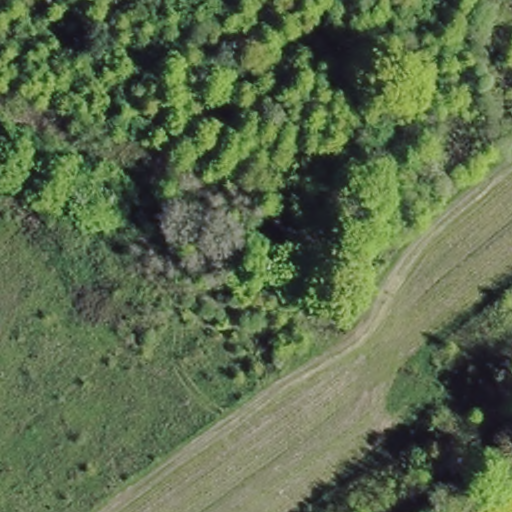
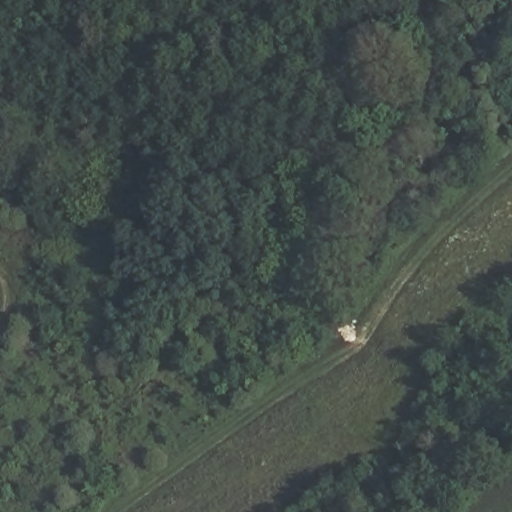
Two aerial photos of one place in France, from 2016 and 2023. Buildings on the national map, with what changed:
[]

